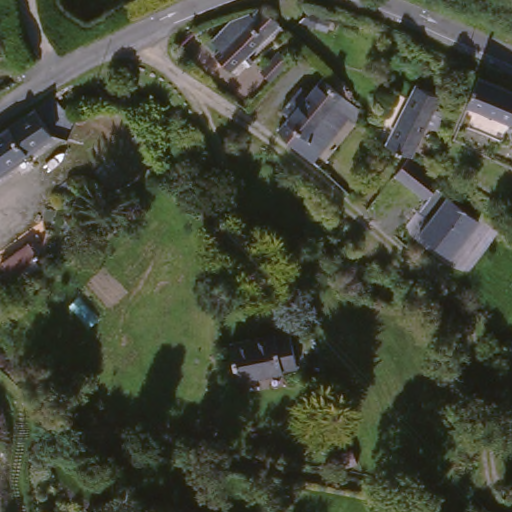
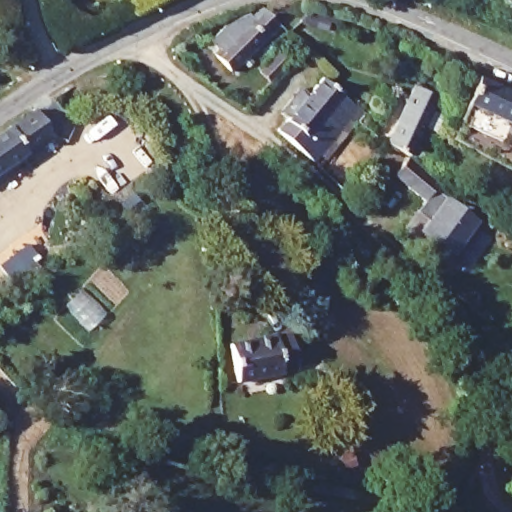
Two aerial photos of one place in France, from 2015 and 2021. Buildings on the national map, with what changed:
unchanged [(220,50),(214,41),(249,22),(255,25),(263,16),(274,27),(229,71),(216,56),(220,50)]
unchanged [(512,93),(512,125),(466,107),(477,79),(512,93)]
unchanged [(279,135),(323,87),(354,114),(307,163),(279,135)]
unchanged [(441,103),(413,159),(387,147),(413,89),(441,103)]
unchanged [(56,138),(30,162),(0,183),(0,135),(33,110),(56,138)]
unchanged [(441,191),(481,227),(449,260),(421,234),(438,217),(427,207),(430,204),(399,179),(406,172),(413,162),(433,177),(444,186),(441,191)]
unchanged [(19,259),(0,273),(0,253),(9,246),(19,259)]
unchanged [(284,376),(239,385),(231,344),(277,337),(284,376)]

